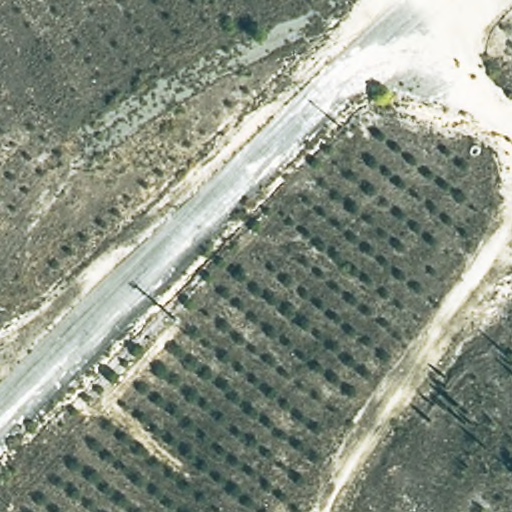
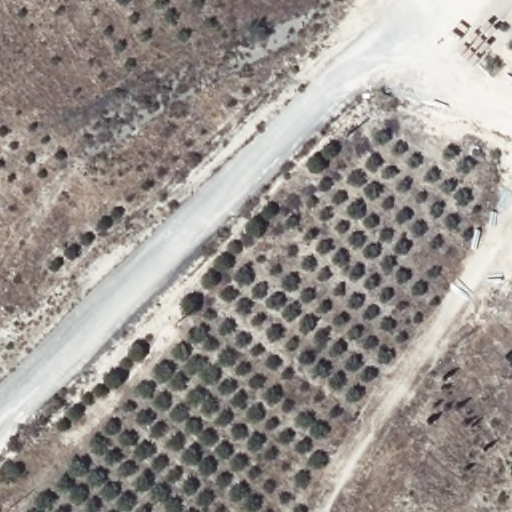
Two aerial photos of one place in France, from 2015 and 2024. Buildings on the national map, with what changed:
[]

